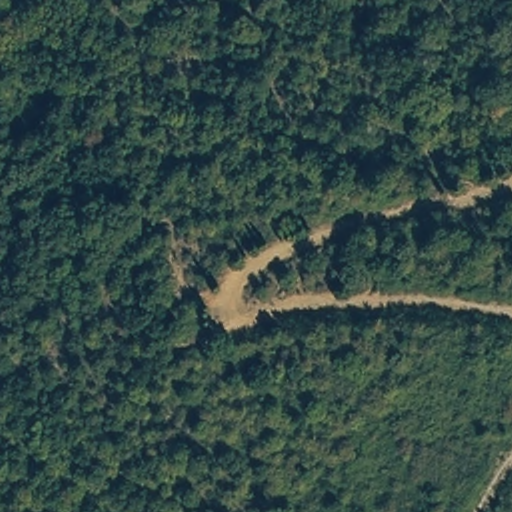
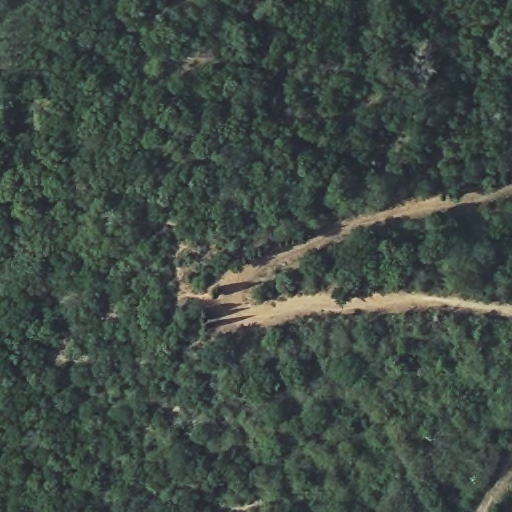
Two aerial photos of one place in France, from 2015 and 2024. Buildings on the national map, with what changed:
[]

